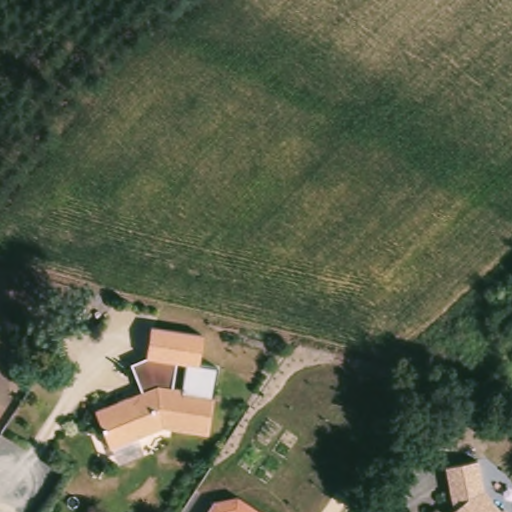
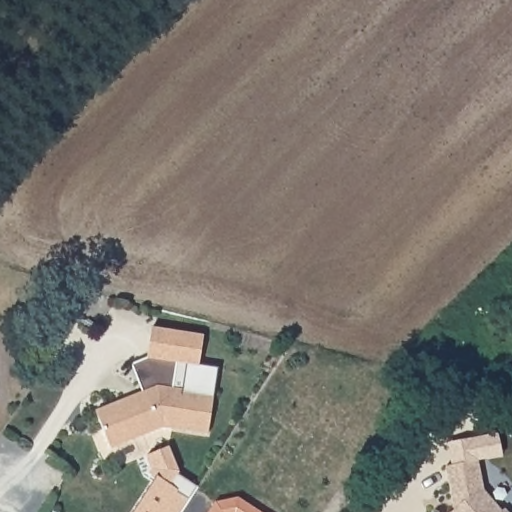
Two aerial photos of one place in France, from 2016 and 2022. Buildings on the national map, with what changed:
unchanged [(130,361),(145,355),(150,325),(202,334),(197,362),(175,359),(172,385),(213,391),(207,430),(162,424),(110,445),(94,408),(127,395),(141,389),(130,361)]
new [(155,475),(147,470),(150,466),(145,452),(167,443),(177,468),(176,470),(196,483),(178,512),(131,512),(155,475)]
unchanged [(502,511),(505,508),(509,512),(447,512),(442,507),(450,500),(450,492),(454,457),(486,460),(483,490),(502,511)]
unchanged [(214,502),(239,498),(260,512),(207,512),(214,502)]

